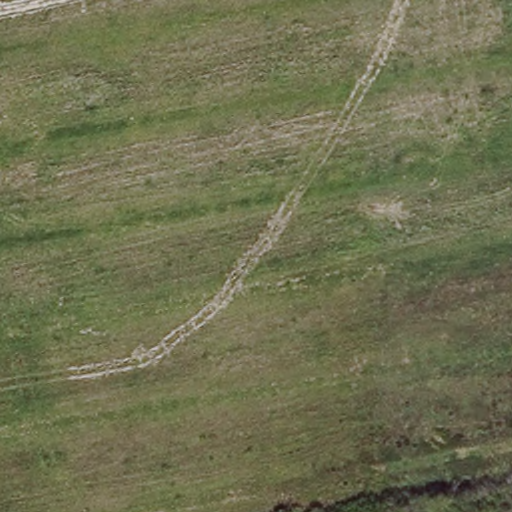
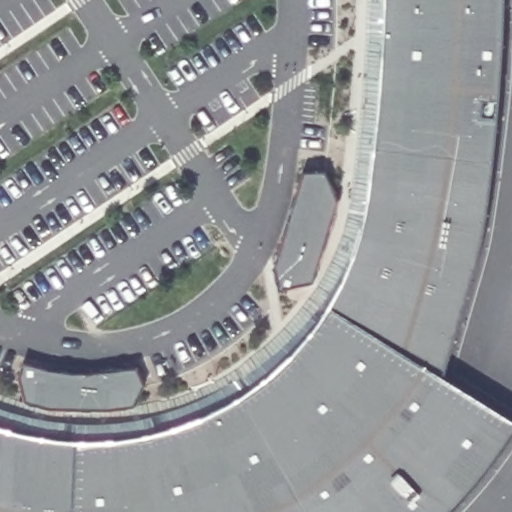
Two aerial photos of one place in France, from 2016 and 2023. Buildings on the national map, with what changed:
new [(496,62),(493,116),(485,187),(474,253),(438,376),(512,423),(512,429),(461,504),(452,512),(0,512),(0,428),(29,436),(64,440),(106,440),(140,435),(169,427),(196,417),(233,397),(263,375),(285,355),(307,329),(322,306),(336,282),(349,251),(357,223),(363,193),(368,149),(373,91),(377,34),(379,0),(499,0),(496,62)]
new [(301,173),(323,171),(335,201),(310,282),(277,291),(271,269),(301,173)]
new [(20,363),(45,371),(82,375),(132,368),(140,385),(130,406),(105,410),(45,409),(21,402),(15,379),(20,363)]

